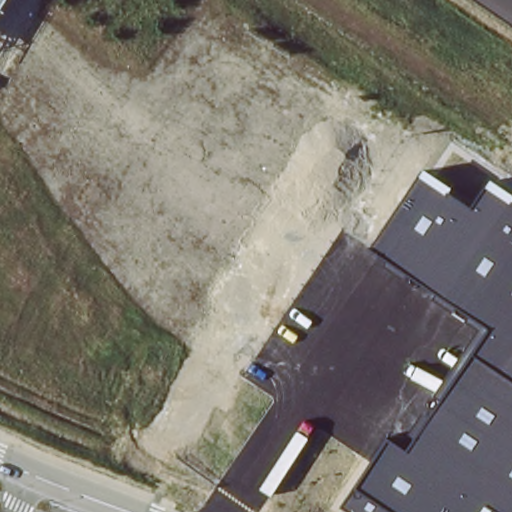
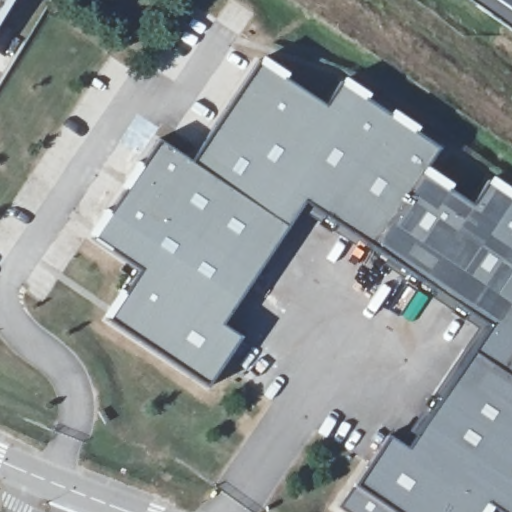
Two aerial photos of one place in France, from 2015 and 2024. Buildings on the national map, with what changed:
unchanged [(0,13),(0,0),(8,0),(0,13)]
new [(157,140),(191,163),(258,62),(325,107),(341,83),(435,147),(426,167),(371,246),(304,200),(220,324),(239,337),(207,386),(107,320),(141,269),(93,240),(157,140)]
unchanged [(449,190),(471,204),(491,177),(512,192),(512,512),(497,512),(492,508),(490,512),(347,512),(340,507),(356,486),(389,436),(403,444),(480,327),(468,321),(472,314),(458,305),(453,312),(434,298),(438,293),(409,271),(404,277),(385,264),(390,259),(371,246),(426,167),(452,185),(449,190)]

